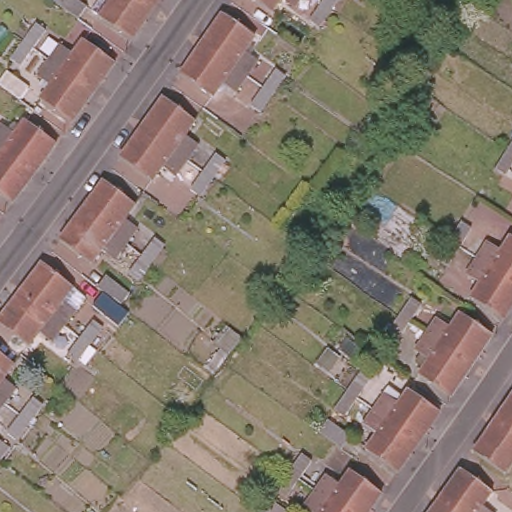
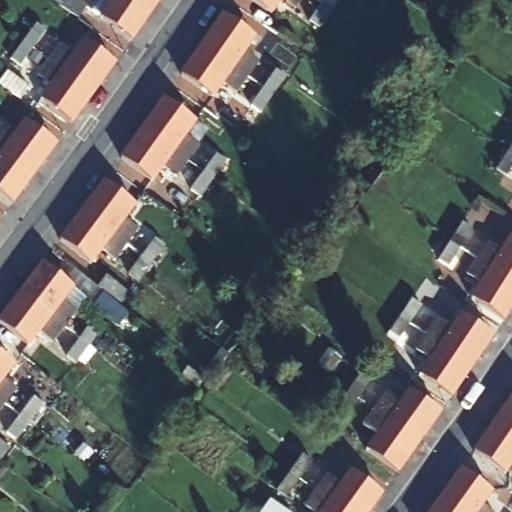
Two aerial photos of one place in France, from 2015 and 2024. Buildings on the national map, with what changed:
unchanged [(131,38),(90,9),(97,0),(139,0),(151,8),(131,38)]
unchanged [(139,0),(157,0),(151,8),(139,0)]
unchanged [(254,0),(280,0),(272,12),(254,0)]
unchanged [(286,0),(297,0),(293,5),(286,0)]
unchanged [(320,1),(322,0),(336,0),(330,8),(318,26),(308,19),(320,1)]
unchanged [(201,44),(222,14),(255,35),(245,49),(258,59),(246,75),(201,44)]
unchanged [(80,37),(120,66),(98,96),(57,67),(80,37)]
unchanged [(235,91),(221,82),(211,96),(180,74),(201,44),(246,75),(235,91)]
unchanged [(98,96),(75,126),(35,97),(57,67),(98,96)]
unchanged [(250,105),(262,87),(276,68),(285,75),(272,94),(259,112),(250,105)]
unchanged [(141,127),(163,97),(195,120),(185,134),(197,142),(185,159),(141,127)]
unchanged [(15,112),(55,142),(33,171),(0,146),(0,134),(15,112)]
unchanged [(175,175),(162,167),(153,179),(120,157),(141,127),(185,159),(175,175)]
unchanged [(507,150),(512,143),(512,162),(504,174),(495,169),(507,150)]
unchanged [(33,171),(10,201),(0,193),(0,146),(33,171)]
unchanged [(188,188),(201,170),(215,150),(226,158),(211,178),(199,196),(188,188)]
unchanged [(81,209),(102,180),(134,203),(123,217),(136,226),(124,242),(81,209)]
unchanged [(112,258),(100,250),(91,262),(59,238),(81,209),(124,242),(112,258)]
unchanged [(436,259),(449,239),(461,220),(470,225),(457,245),(445,264),(436,259)]
unchanged [(499,249),(510,235),(512,237),(512,282),(476,258),(487,241),(499,249)]
unchanged [(123,272),(138,252),(151,236),(161,243),(148,260),(133,279),(123,272)]
unchanged [(512,302),(501,318),(468,297),(477,284),(465,275),(476,258),(512,282),(512,302)]
unchanged [(20,291),(40,263),(72,285),(61,300),(73,309),(62,323),(20,291)]
unchanged [(50,339),(38,330),(27,343),(0,324),(0,316),(20,291),(62,323),(50,339)]
unchanged [(386,336),(399,315),(410,298),(420,304),(408,322),(395,342),(386,336)]
unchanged [(437,318),(450,325),(457,313),(490,334),(470,364),(426,334),(437,318)]
unchanged [(61,353),(76,334),(89,317),(99,324),(85,342),(71,360),(61,353)]
unchanged [(470,364),(450,395),(417,374),(427,359),(416,350),(426,334),(470,364)]
unchanged [(0,401),(0,353),(13,362),(2,376),(13,386),(1,401),(0,401)]
unchanged [(348,390),(360,373),(369,379),(356,396),(342,415),(333,410),(348,390)]
unchanged [(383,394),(396,403),(406,389),(438,411),(417,441),(373,408),(383,394)]
unchanged [(29,394),(38,402),(24,419),(10,437),(0,430),(15,412),(29,394)]
unchanged [(512,394),(512,435),(493,421),(512,394)]
unchanged [(0,403),(0,401),(1,401),(0,403)]
unchanged [(417,441),(395,471),(363,449),(372,437),(359,427),(373,408),(417,441)]
unchanged [(505,473),(472,451),(493,421),(512,435),(512,464),(511,463),(505,473)]
unchanged [(274,491),(288,471),(301,454),(310,460),(297,477),(282,497),(274,491)]
unchanged [(438,498),(460,468),(492,490),(482,504),(492,512),(457,512),(438,498)]
unchanged [(325,475),(337,484),(348,469),(380,492),(366,512),(345,512),(314,490),(325,475)]
unchanged [(345,512),(308,512),(301,507),(314,490),(345,512)]
unchanged [(438,498),(457,512),(428,512),(438,498)]

